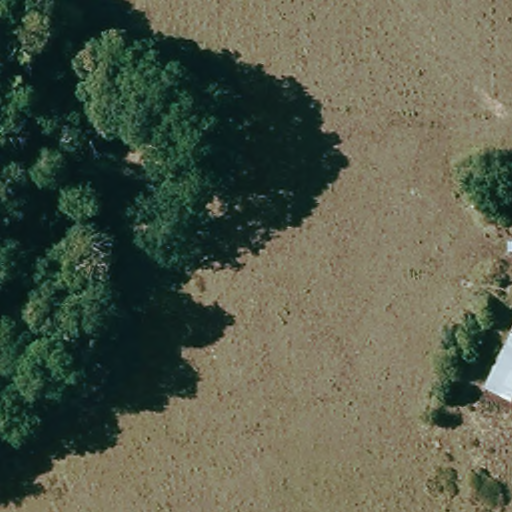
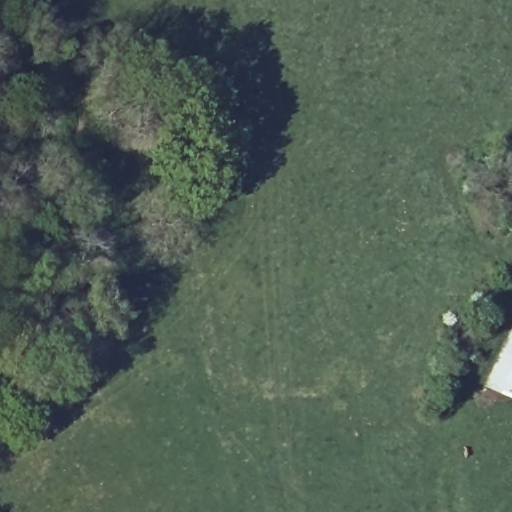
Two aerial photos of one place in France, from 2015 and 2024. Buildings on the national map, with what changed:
unchanged [(512,395),(496,387),(512,355),(512,395)]

